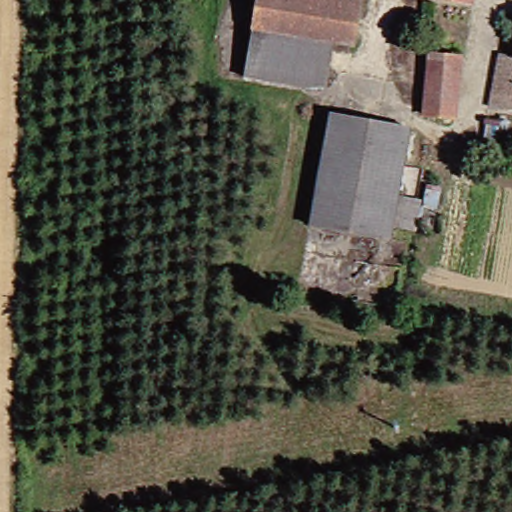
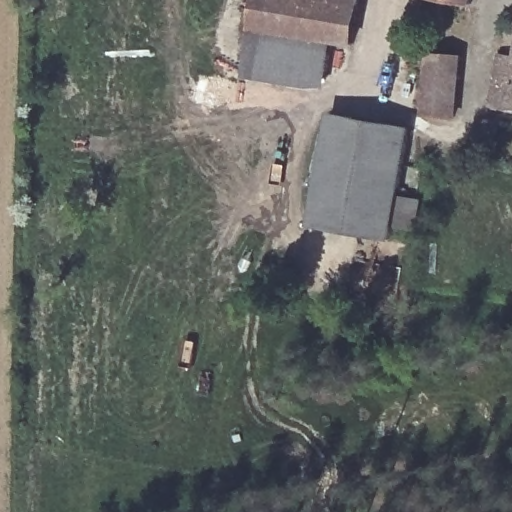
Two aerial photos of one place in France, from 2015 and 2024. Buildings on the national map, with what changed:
unchanged [(344,45),(320,41),(244,28),(250,0),(349,0),(344,45)]
unchanged [(482,5),(457,0),(482,0),(482,5)]
unchanged [(485,53),(506,56),(512,21),(512,109),(478,104),(485,53)]
unchanged [(244,28),(320,41),(317,79),(237,63),(244,28)]
unchanged [(435,54),(466,58),(462,121),(429,118),(435,54)]
unchanged [(425,201),(422,229),(409,228),(392,226),(392,237),(315,228),(330,117),(413,127),(399,195),(410,197),(425,201)]

